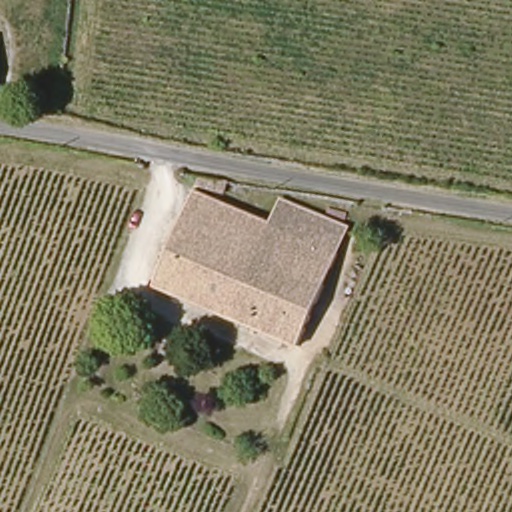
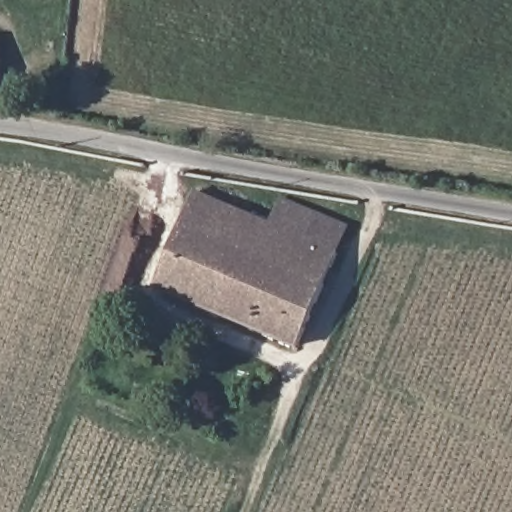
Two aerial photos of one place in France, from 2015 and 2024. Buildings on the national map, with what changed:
unchanged [(246,182),(244,194),(211,190),(213,177),(246,182)]
unchanged [(270,221),(281,195),(353,222),(342,251),(270,221)]
unchanged [(304,343),(173,285),(211,197),(270,221),(342,251),(304,343)]

